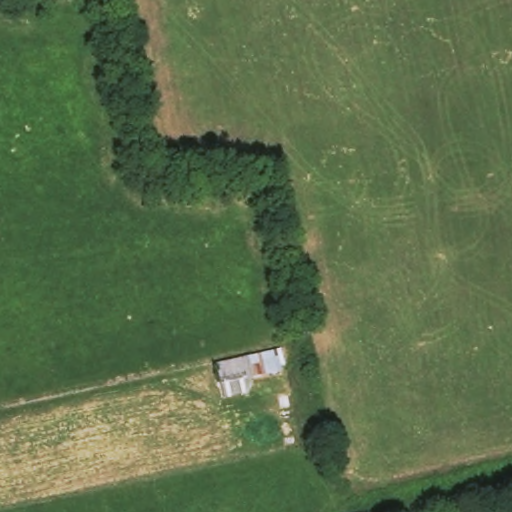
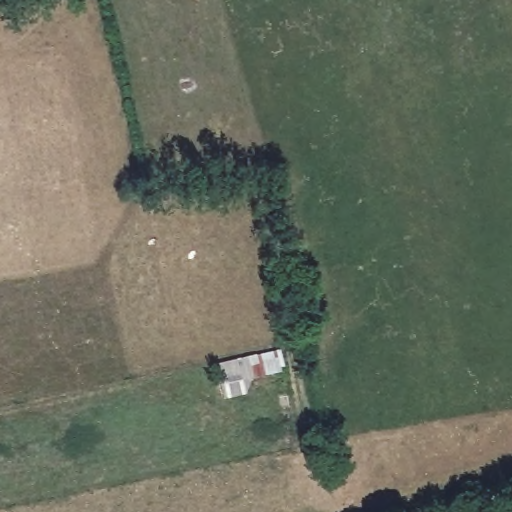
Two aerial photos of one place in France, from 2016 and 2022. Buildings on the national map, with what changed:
unchanged [(252,393),(251,363),(298,358),(301,387),(252,393)]

